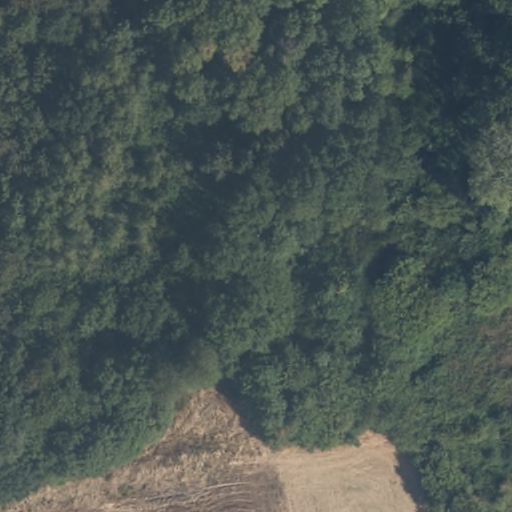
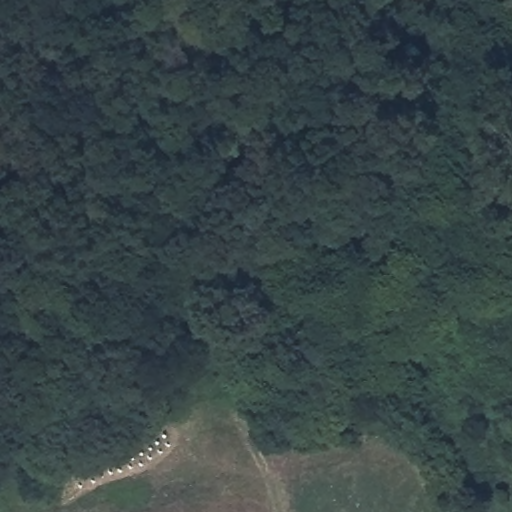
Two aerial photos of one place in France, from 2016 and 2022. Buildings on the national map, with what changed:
[]

